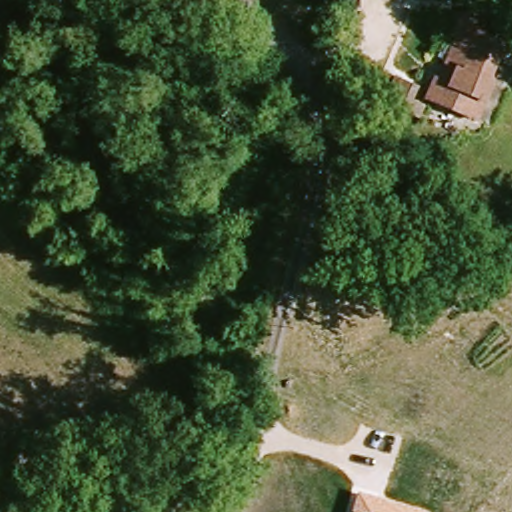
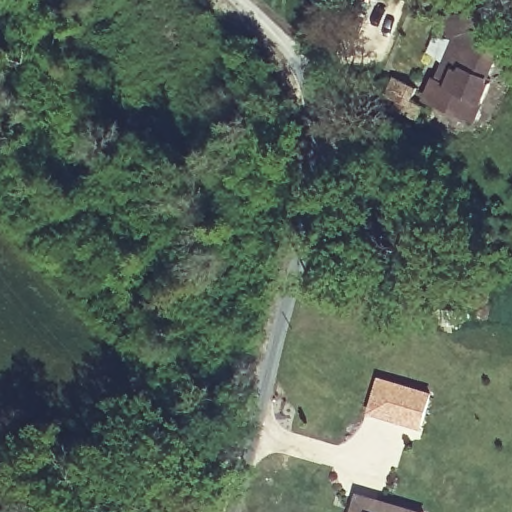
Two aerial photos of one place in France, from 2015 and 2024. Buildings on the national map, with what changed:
unchanged [(462,36),(451,34),(450,15),(485,11),(487,36),(510,44),(493,82),(497,84),(482,119),(430,98),(441,75),(450,60),(462,36)]
unchanged [(405,110),(405,104),(390,95),(398,76),(416,86),(413,95),(426,102),(420,117),(405,110)]
unchanged [(362,306),(380,293),(387,304),(376,318),(362,306)]
new [(433,393),(422,429),(367,415),(379,377),(433,393)]
unchanged [(426,512),(352,512),(358,492),(426,512)]

